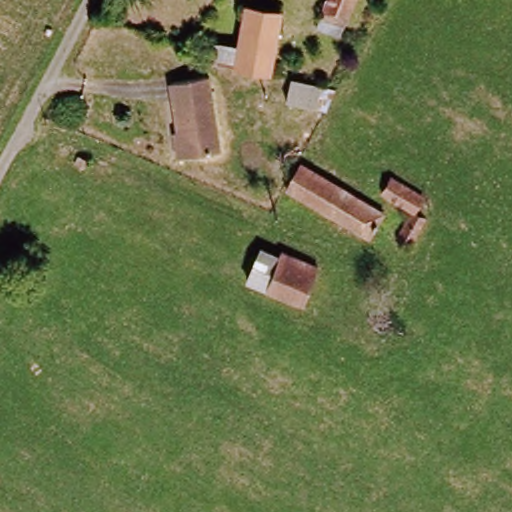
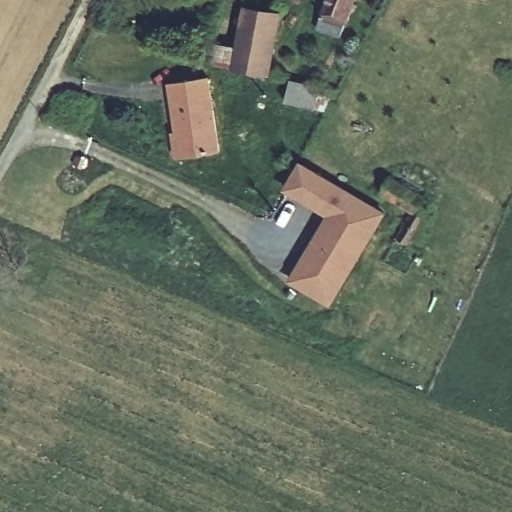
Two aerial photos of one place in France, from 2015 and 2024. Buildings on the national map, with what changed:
unchanged [(342,37),(318,27),(330,0),(357,0),(342,37)]
unchanged [(245,5),(285,11),(274,75),(209,63),(213,41),(238,46),(245,5)]
unchanged [(280,100),(288,76),(320,85),(313,109),(280,100)]
unchanged [(183,154),(172,82),(212,77),(221,150),(183,154)]
unchanged [(374,236),(291,189),(305,163),(388,212),(374,236)]
unchanged [(394,178),(427,195),(417,210),(386,193),(394,178)]
unchanged [(417,210),(427,216),(410,244),(399,238),(417,210)]
new [(333,306),(289,280),(328,211),(374,236),(333,306)]
demolished [(251,279),(263,249),(283,256),(285,252),(321,267),(305,301),(251,279)]

